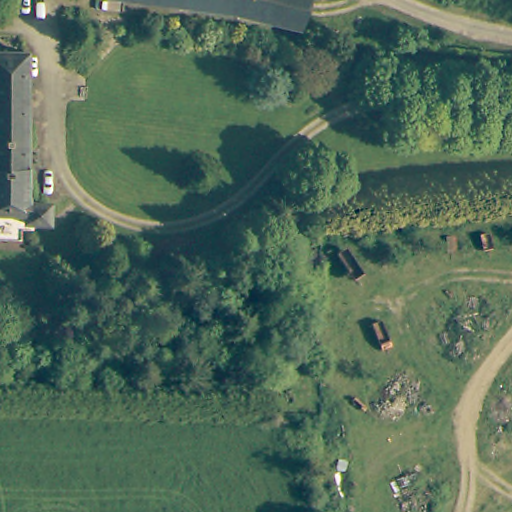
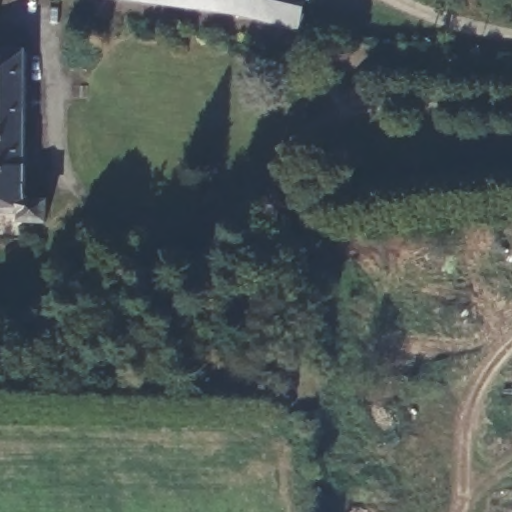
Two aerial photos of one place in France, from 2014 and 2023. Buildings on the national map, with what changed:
unchanged [(302,29),(293,27),(248,16),(167,6),(121,0),(311,0),(302,29)]
unchanged [(27,98),(25,143),(25,144),(37,145),(36,170),(23,169),(22,183),(21,199),(29,200),(41,200),(41,219),(30,219),(15,218),(15,226),(0,226),(0,56),(29,57),(27,98)]

